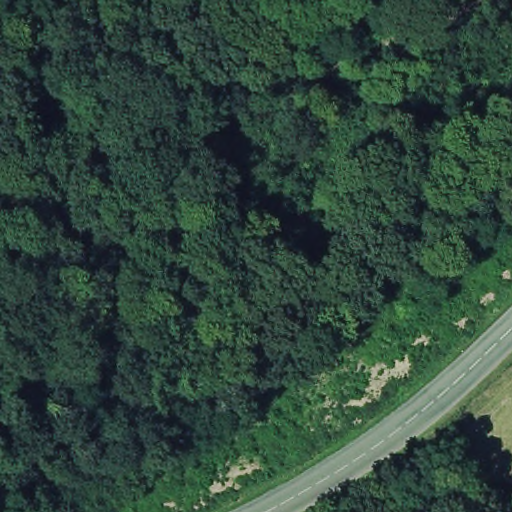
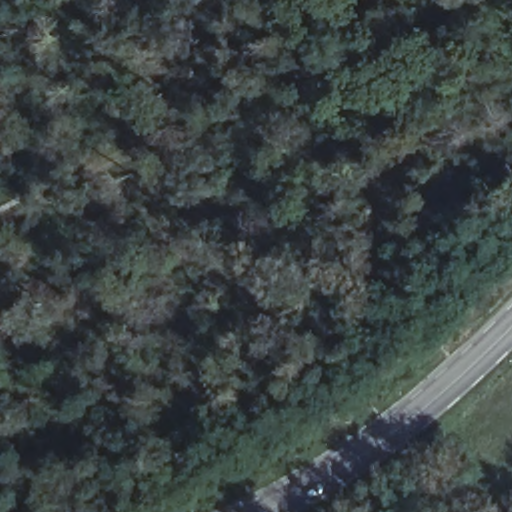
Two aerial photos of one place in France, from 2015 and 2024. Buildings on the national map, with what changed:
[]

